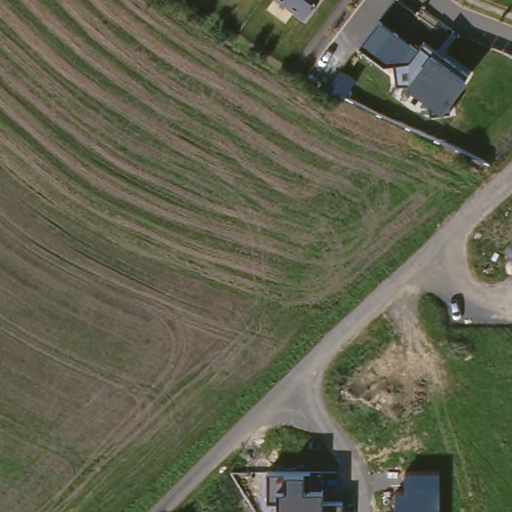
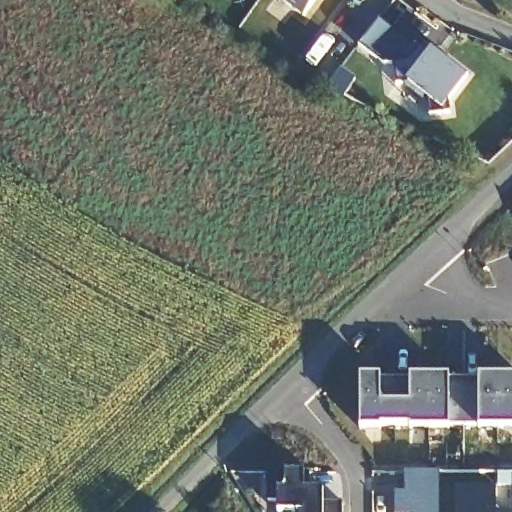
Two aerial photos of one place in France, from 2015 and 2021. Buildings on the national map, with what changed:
unchanged [(314,0),(302,15),(282,0),(314,0)]
unchanged [(467,75),(462,80),(466,81),(450,103),(451,114),(441,111),(430,115),(428,100),(406,84),(407,82),(396,83),(394,63),(385,65),(360,45),(378,21),(418,50),(423,42),(467,75)]
new [(360,428),(358,375),(512,376),(512,428),(360,428)]
unchanged [(341,503),(341,512),(298,512),(298,510),(277,511),(277,501),(267,500),(267,473),(286,472),(303,473),(303,490),(322,490),(322,503),(341,503)]
unchanged [(395,491),(405,491),(405,472),(438,472),(439,512),(395,512),(395,491)]
new [(496,486),(496,511),(510,511),(511,512),(453,512),(452,488),(496,486)]

